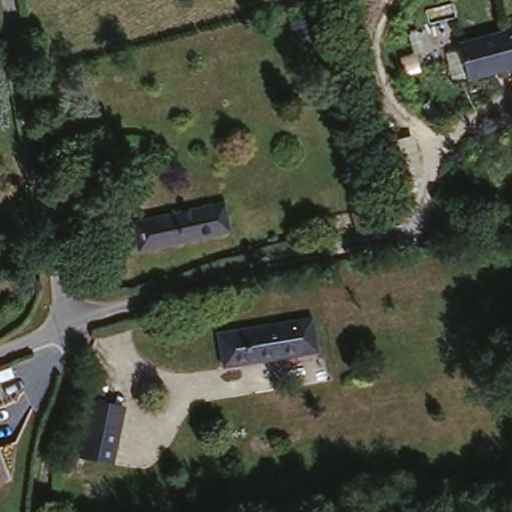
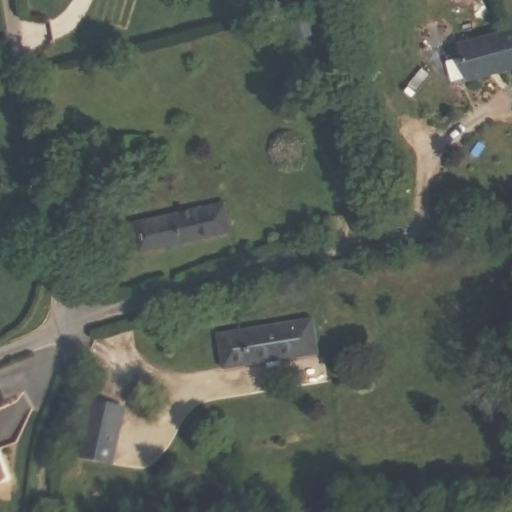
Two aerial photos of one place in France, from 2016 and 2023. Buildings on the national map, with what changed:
unchanged [(447,46),(512,27),(512,62),(458,77),(447,46)]
unchanged [(229,232),(140,251),(134,224),(223,205),(229,232)]
unchanged [(312,320),(314,334),(317,352),(224,368),(219,336),(312,320)]
unchanged [(93,402),(126,409),(114,464),(81,458),(93,402)]
unchanged [(0,485),(0,471),(4,484),(0,485)]

